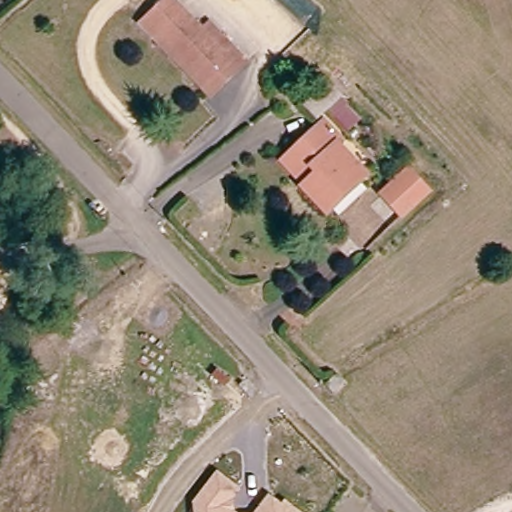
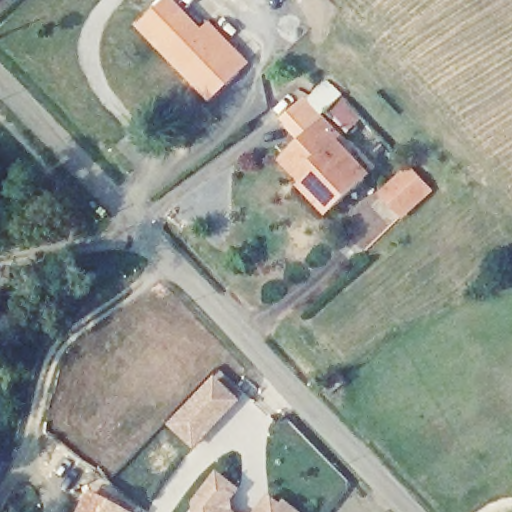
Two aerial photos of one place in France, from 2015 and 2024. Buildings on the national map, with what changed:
unchanged [(140,24),(168,0),(172,0),(200,35),(214,24),(249,66),(222,89),(207,101),(155,41),(140,24)]
unchanged [(306,101),(330,83),(338,91),(345,99),(320,119),(313,110),(306,101)]
unchanged [(300,151),(330,124),(347,143),(344,147),(370,176),(334,211),(311,186),(289,162),(300,151)]
unchanged [(413,173),(433,192),(407,218),(388,199),(413,173)]
unchanged [(35,210),(70,207),(70,236),(34,240),(35,210)]
new [(167,426),(215,377),(240,402),(194,450),(167,426)]
demolished [(362,395),(372,402),(365,411),(355,404),(362,395)]
unchanged [(242,491),(234,502),(235,512),(194,512),(192,501),(216,471),(242,491)]
new [(89,491),(128,512),(77,512),(89,491)]
unchanged [(268,492),(281,502),(285,499),(301,512),(253,512),(268,492)]

